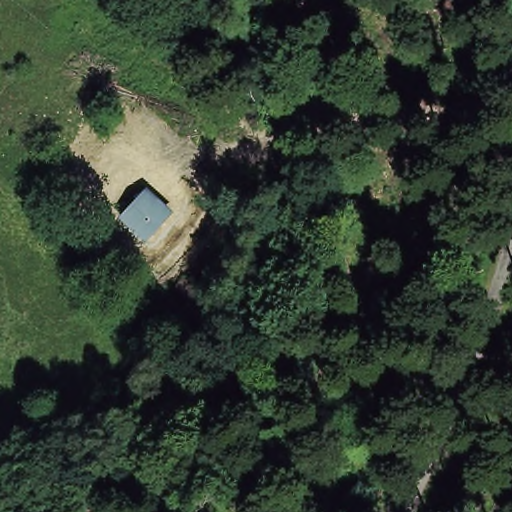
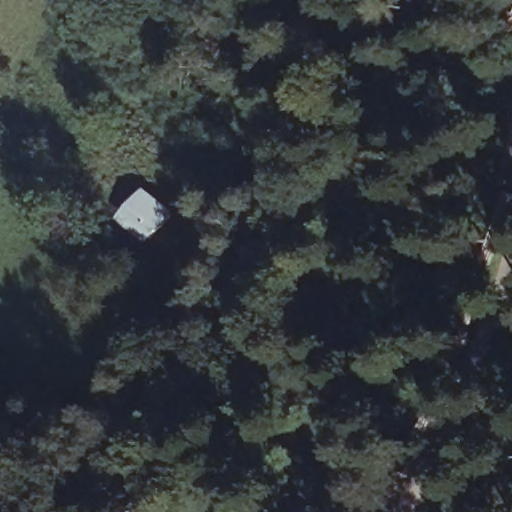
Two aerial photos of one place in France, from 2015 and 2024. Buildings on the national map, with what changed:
unchanged [(130,214),(147,194),(170,215),(148,240),(131,225),(125,219),(130,214)]

